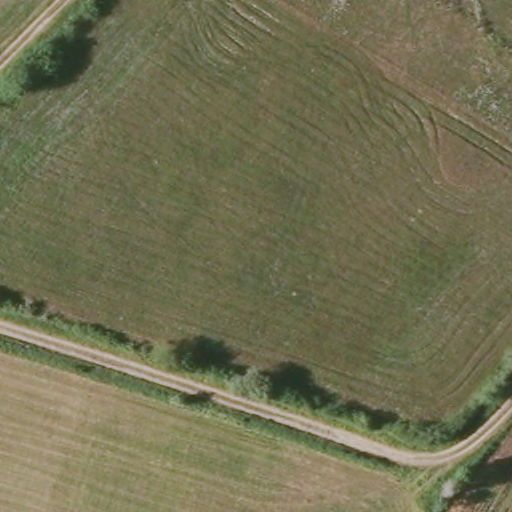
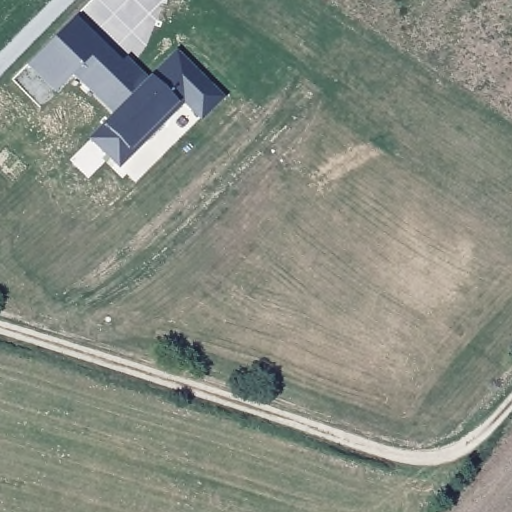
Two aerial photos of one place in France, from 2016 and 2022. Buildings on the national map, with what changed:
new [(90,141),(114,115),(74,73),(55,91),(28,64),(78,15),(147,83),(174,54),(220,98),(134,184),(90,141)]

